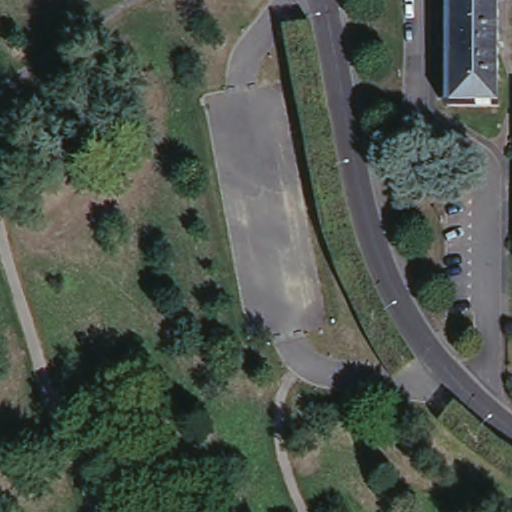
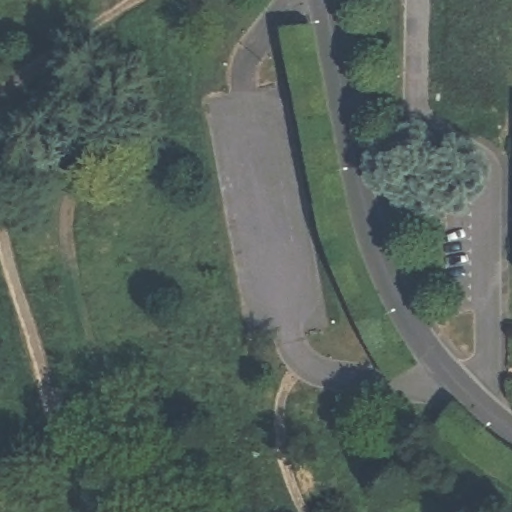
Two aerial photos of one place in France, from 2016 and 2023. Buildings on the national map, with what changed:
demolished [(450,110),(449,33),(449,0),(497,0),(497,110),(450,110)]

